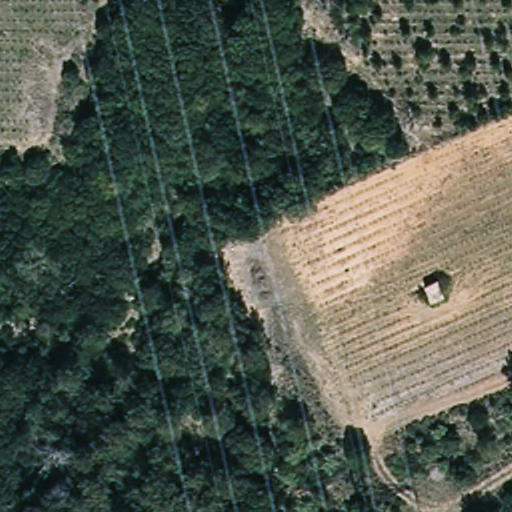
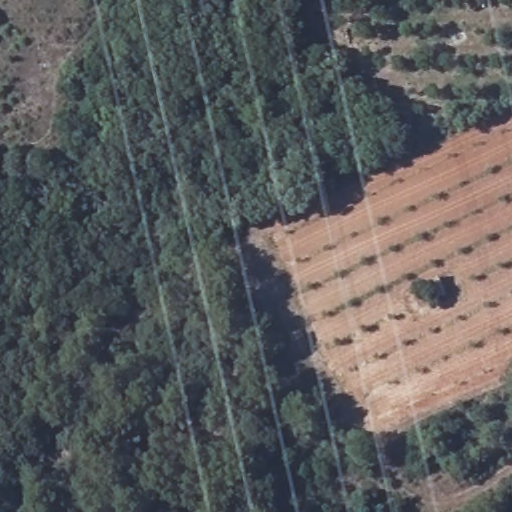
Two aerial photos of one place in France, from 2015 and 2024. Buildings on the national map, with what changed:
unchanged [(448,291),(436,296),(429,279),(440,274),(444,282),(448,291)]

